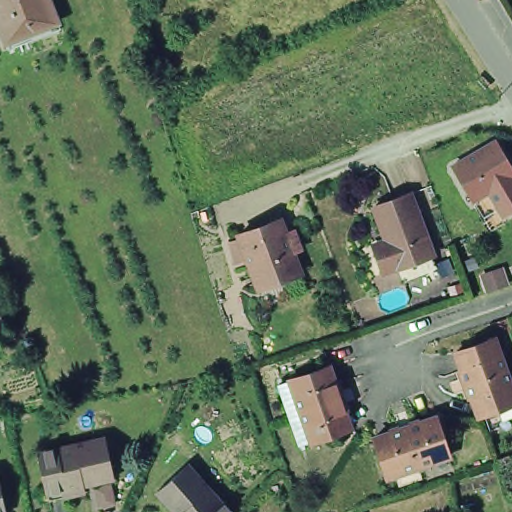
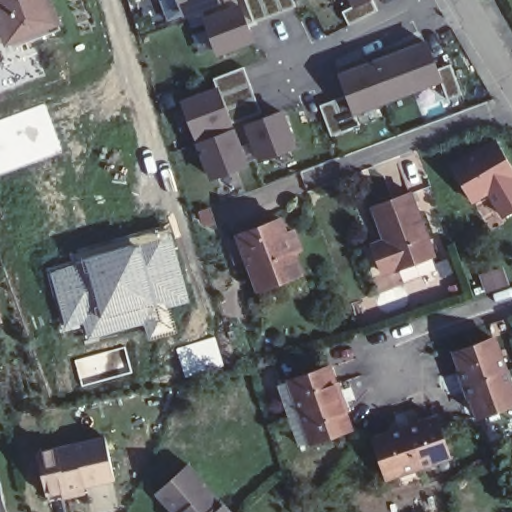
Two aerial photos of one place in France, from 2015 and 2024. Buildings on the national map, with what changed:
unchanged [(53,29),(13,45),(11,38),(0,42),(0,0),(42,0),(46,12),(50,20),(53,29)]
new [(184,16),(179,0),(222,0),(223,2),(184,16)]
new [(226,1),(226,0),(230,0),(226,1)]
new [(254,22),(246,0),(293,0),(296,7),(254,22)]
new [(349,25),(343,12),(353,6),(350,0),(375,0),(378,10),(349,25)]
new [(254,42),(218,55),(203,16),(239,2),(254,42)]
new [(462,94),(448,99),(443,82),(357,115),(359,125),(331,135),(320,105),(346,95),(338,74),(428,40),(438,69),(451,64),(462,94)]
new [(233,122),(235,127),(249,165),(210,180),(196,142),(180,100),(218,86),(214,77),(244,67),(261,111),(233,122)]
new [(298,147),(259,162),(245,124),(284,110),(298,147)]
unchanged [(512,163),(512,210),(501,217),(487,192),(471,201),(449,164),(497,136),(512,163)]
unchanged [(389,239),(376,205),(414,192),(437,252),(434,254),(401,267),(401,266),(386,271),(379,252),(376,243),(389,239)]
unchanged [(236,231),(279,216),(284,232),(294,229),(299,244),(290,247),(298,269),(255,285),(236,231)]
new [(51,272),(170,236),(194,301),(168,308),(175,335),(148,341),(144,325),(87,340),(83,327),(65,330),(51,272)]
new [(214,335),(224,367),(185,379),(174,348),(214,335)]
unchanged [(512,394),(512,405),(478,419),(454,355),(493,341),(512,394)]
unchanged [(293,379),(332,365),(354,426),(314,439),(293,379)]
unchanged [(434,415),(448,454),(387,475),(374,436),(434,415)]
unchanged [(105,437),(114,476),(47,491),(38,452),(105,437)]
unchanged [(186,462),(232,511),(231,512),(175,512),(156,491),(186,462)]
unchanged [(1,512),(0,512),(0,508),(1,512)]

